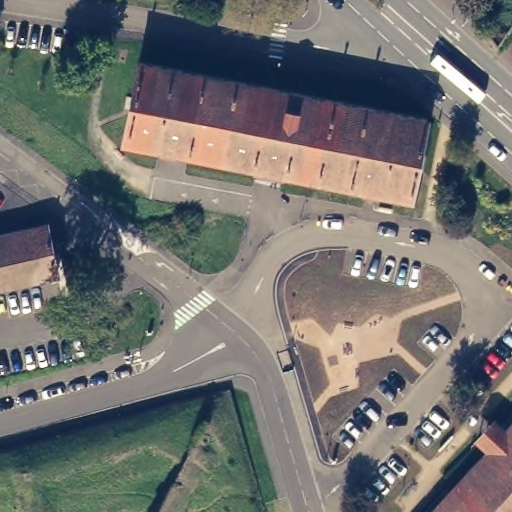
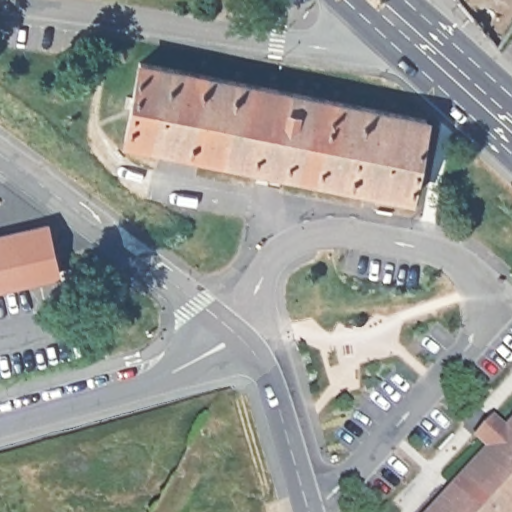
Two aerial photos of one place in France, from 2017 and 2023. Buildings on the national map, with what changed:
unchanged [(503,2),(512,9),(512,12),(495,35),(484,27),(503,2)]
unchanged [(140,62),(427,120),(411,198),(125,141),(140,62)]
unchanged [(42,221),(52,270),(0,282),(0,231),(42,221)]
unchanged [(156,512),(207,418),(225,424),(202,472),(181,512),(156,512)]
unchanged [(485,436),(500,420),(511,431),(512,431),(512,512),(438,512),(496,447),(485,436)]
unchanged [(56,512),(27,512),(23,499),(51,491),(56,512)]

